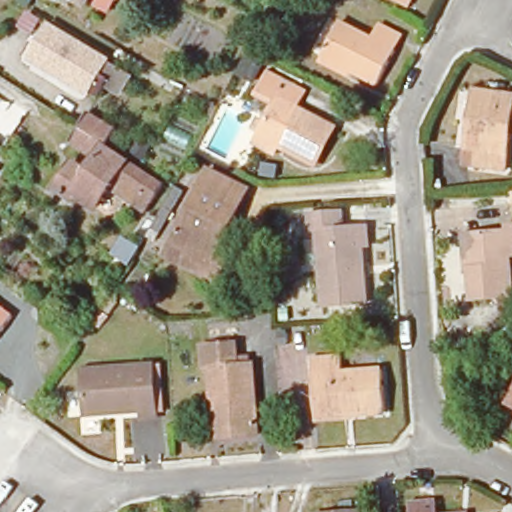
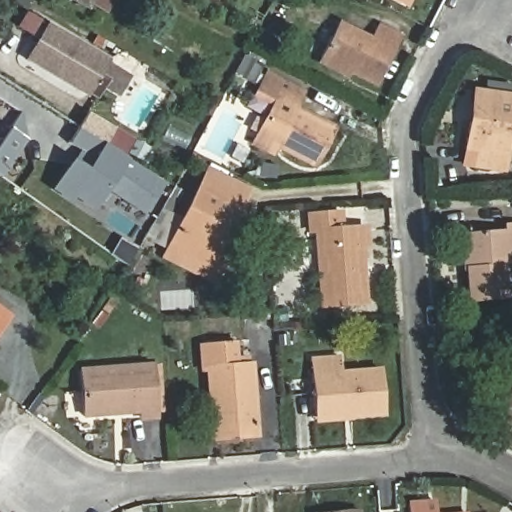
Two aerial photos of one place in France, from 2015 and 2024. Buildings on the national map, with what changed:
unchanged [(110,12),(89,0),(87,5),(77,0),(117,0),(110,12)]
unchanged [(409,11),(385,0),(415,0),(409,11)]
unchanged [(50,25),(107,60),(88,93),(30,59),(50,25)]
unchanged [(373,89),(317,60),(335,27),(367,43),(375,27),(398,40),(373,89)]
unchanged [(319,164),(264,135),(282,100),(267,92),(275,77),(310,95),(302,110),(337,128),(319,164)]
unchanged [(482,165),(485,150),(472,148),(481,90),(512,95),(512,149),(510,169),(482,165)]
unchanged [(109,187),(95,208),(75,195),(72,200),(56,189),(74,161),(88,170),(96,159),(69,141),(79,125),(87,112),(115,129),(106,141),(104,145),(162,183),(145,210),(109,187)]
unchanged [(220,275),(181,255),(164,247),(171,234),(205,165),(250,187),(234,217),(216,253),(227,259),(220,275)]
unchanged [(183,192),(155,243),(145,237),(172,187),(183,192)]
unchanged [(362,248),(367,302),(322,306),(317,230),(311,231),(310,215),(342,212),(343,229),(367,227),(368,247),(362,248)]
unchanged [(508,255),(512,295),(471,298),(468,266),(473,266),(471,234),(507,231),(507,225),(512,225),(512,254),(508,255)]
unchanged [(130,262),(113,253),(122,237),(139,246),(130,262)]
unchanged [(0,329),(0,307),(11,315),(0,329)]
unchanged [(219,438),(216,402),(211,403),(208,368),(203,368),(201,346),(236,343),(237,365),(252,365),(258,435),(219,438)]
unchanged [(387,418),(352,421),(351,411),(315,413),(312,364),(342,362),(342,375),(383,371),(387,418)]
unchanged [(160,417),(142,418),(142,412),(86,415),(83,369),(157,365),(160,417)]
unchanged [(512,396),(512,405),(508,403),(512,396)]
unchanged [(434,506),(434,512),(411,512),(411,508),(434,506)]

